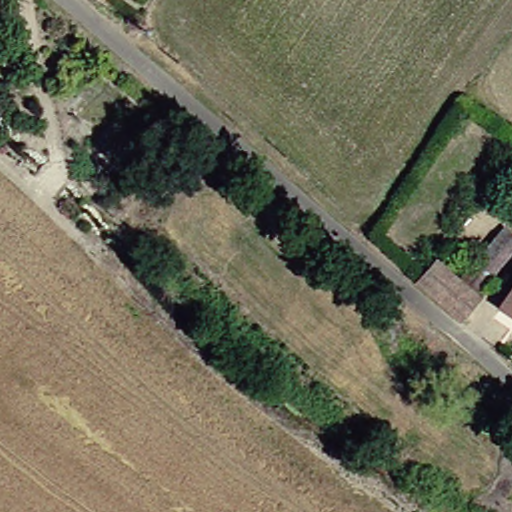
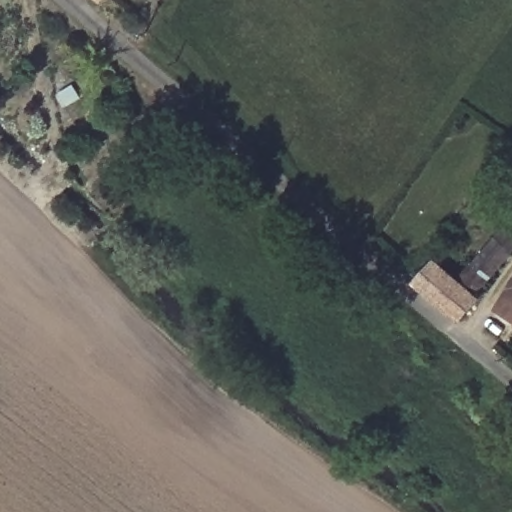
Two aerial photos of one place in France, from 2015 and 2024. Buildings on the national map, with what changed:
unchanged [(90,3),(86,0),(93,0),(90,3)]
unchanged [(423,262),(450,284),(494,230),(509,241),(465,295),(470,298),(452,320),(409,281),(423,262)]
unchanged [(512,320),(490,305),(512,274),(512,320)]

